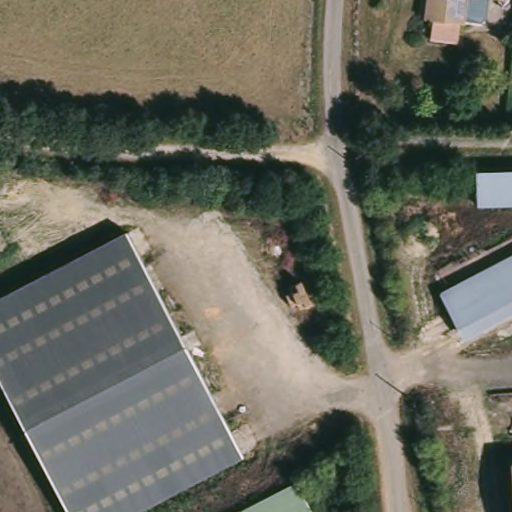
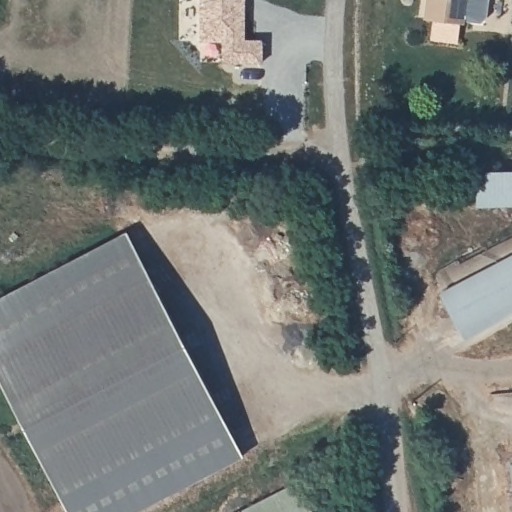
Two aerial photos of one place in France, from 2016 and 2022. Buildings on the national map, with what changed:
new [(200,0),(245,0),(246,40),(262,40),(262,63),(222,63),(222,41),(200,41),(200,0)]
unchanged [(462,26),(458,45),(432,40),(435,21),(427,20),(430,0),(492,0),(487,30),(468,27),(462,26)]
unchanged [(478,172),(512,170),(512,203),(480,205),(478,172)]
unchanged [(244,456),(139,512),(67,512),(0,383),(0,296),(126,230),(244,456)]
unchanged [(512,272),(512,319),(469,343),(451,306),(512,272)]
unchanged [(512,501),(509,467),(512,467),(512,501)]
unchanged [(290,481),(307,512),(239,512),(238,510),(290,481)]
unchanged [(238,510),(239,512),(234,512),(238,510)]

